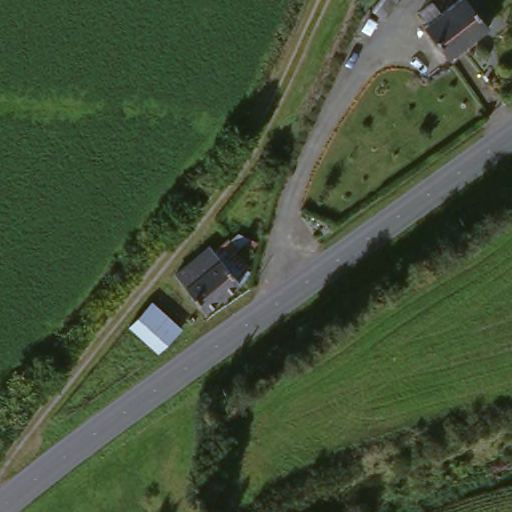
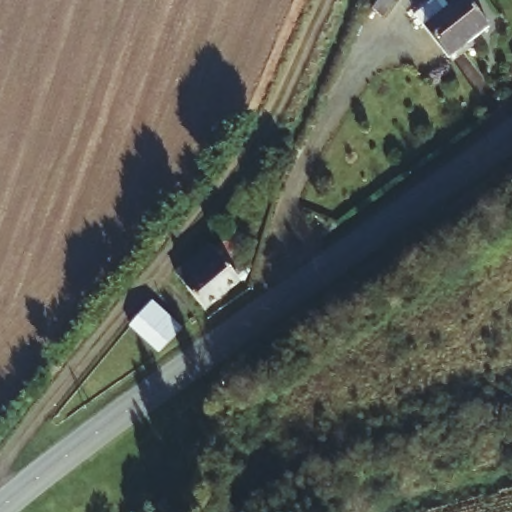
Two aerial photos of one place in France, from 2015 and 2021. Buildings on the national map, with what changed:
unchanged [(379,0),(397,0),(385,19),(373,11),(379,0)]
unchanged [(453,0),(460,0),(484,28),(443,63),(416,31),(453,0)]
unchanged [(348,60),(358,69),(348,83),(336,74),(348,60)]
unchanged [(211,310),(186,278),(181,271),(214,244),(220,251),(246,284),(211,310)]
unchanged [(152,303),(181,332),(158,354),(133,331),(130,328),(152,303)]

